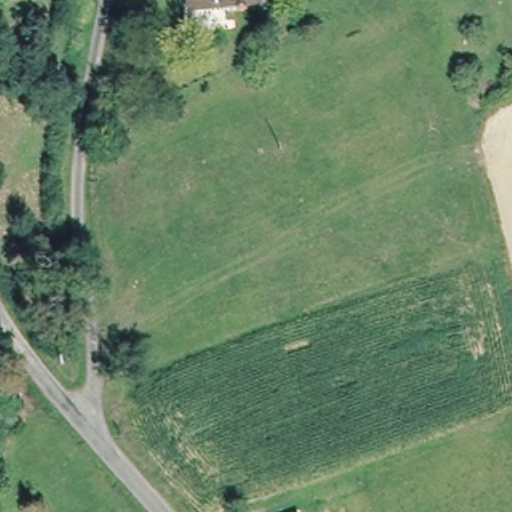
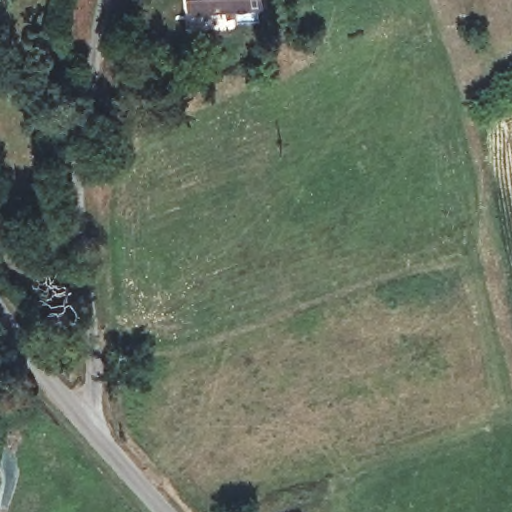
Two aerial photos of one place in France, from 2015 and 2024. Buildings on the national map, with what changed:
unchanged [(192,10),(190,0),(263,0),(263,2),(192,10)]

